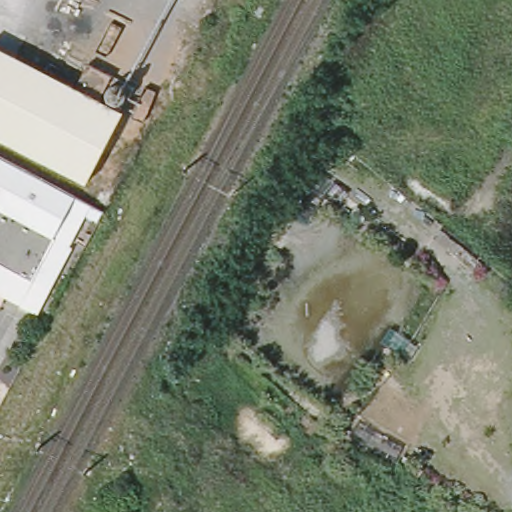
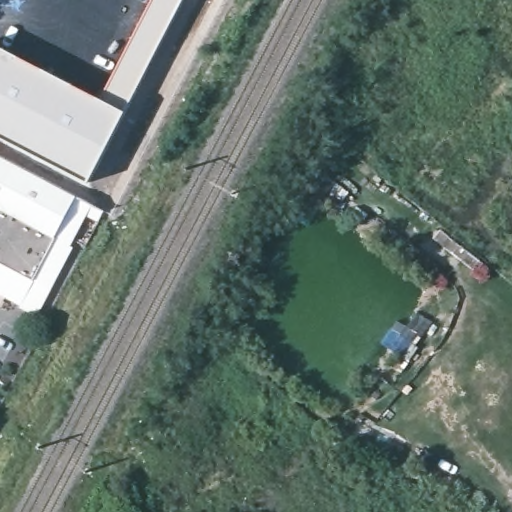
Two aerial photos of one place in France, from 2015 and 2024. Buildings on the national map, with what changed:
new [(126,111),(109,102),(110,100),(119,82),(112,79),(152,0),(185,0),(126,111)]
unchanged [(0,45),(83,88),(93,69),(119,82),(109,102),(130,113),(89,187),(0,139),(0,45)]
unchanged [(49,237),(11,217),(5,227),(0,224),(0,154),(56,185),(59,180),(69,184),(67,191),(72,195),(49,237)]
unchanged [(11,217),(49,237),(72,195),(94,210),(49,293),(31,283),(19,306),(0,295),(0,224),(5,227),(11,217)]

